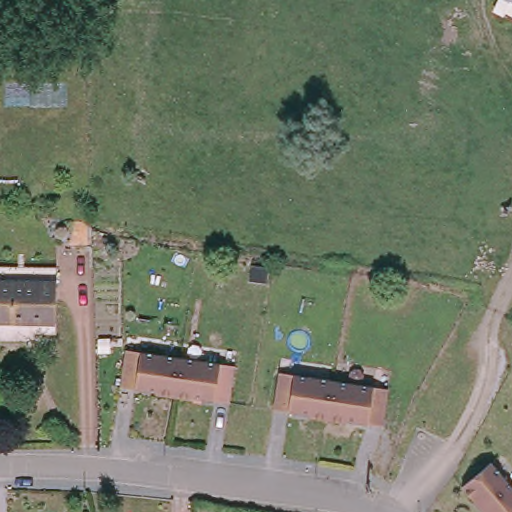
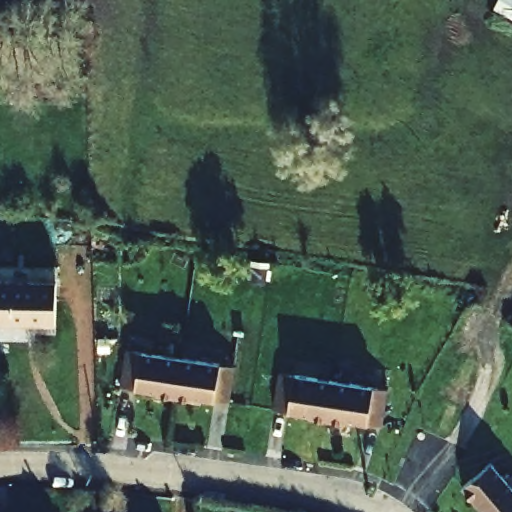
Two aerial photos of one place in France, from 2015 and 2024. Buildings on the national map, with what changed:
unchanged [(512,0),(512,17),(495,7),(499,0),(512,0)]
unchanged [(57,279),(56,321),(0,319),(0,277),(57,279)]
unchanged [(176,363),(231,369),(227,407),(193,403),(193,408),(174,406),(157,405),(157,399),(121,396),(124,357),(176,363)]
unchanged [(274,415),(277,379),(330,385),(386,391),(383,426),(346,423),(345,430),(327,428),(309,426),(310,419),(274,415)]
unchanged [(512,492),(512,512),(477,512),(458,491),(488,465),(512,492)]

